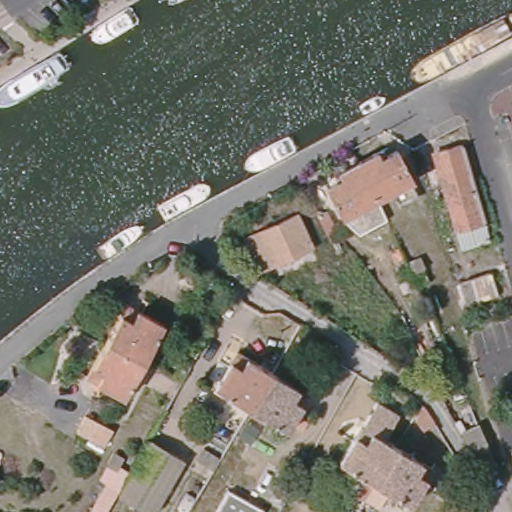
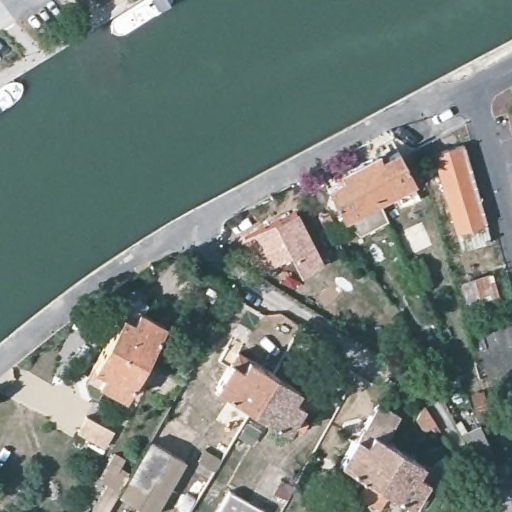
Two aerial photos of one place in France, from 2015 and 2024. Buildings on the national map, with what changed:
unchanged [(477,209),(446,218),(432,167),(428,154),(437,151),(458,144),(477,209)]
unchanged [(400,204),(393,188),(376,197),(359,163),(376,154),(383,151),(387,158),(399,152),(413,178),(411,179),(419,195),(400,204)]
unchanged [(340,215),(326,189),(339,182),(336,175),(342,172),(359,163),(376,197),(340,215)]
unchanged [(261,273),(246,241),(298,215),(314,248),(261,273)]
unchanged [(411,274),(406,262),(419,256),(424,268),(411,274)]
unchanged [(480,298),(483,307),(468,312),(460,283),(490,274),(496,293),(480,298)]
unchanged [(118,311),(123,301),(133,306),(162,322),(142,358),(103,337),(118,311)]
unchanged [(90,361),(103,337),(142,358),(122,394),(94,379),(83,374),(90,361)]
unchanged [(213,393),(228,369),(234,357),(244,364),(269,378),(247,414),(213,393)]
unchanged [(247,414),(269,378),(293,393),(303,399),(297,410),(283,435),(247,414)]
unchanged [(107,449),(79,434),(88,418),(116,435),(107,449)]
unchanged [(484,471),(459,430),(477,422),(497,465),(484,471)]
unchanged [(333,468),(347,444),(354,433),(364,439),(388,453),(366,489),(333,468)]
unchanged [(151,440),(186,459),(158,512),(152,512),(121,495),(151,440)]
unchanged [(198,462),(203,450),(219,458),(213,470),(198,462)]
unchanged [(366,489),(388,453),(412,467),(422,473),(415,485),(401,509),(366,489)]
unchanged [(108,467),(115,455),(123,460),(116,471),(108,467)]
unchanged [(222,512),(234,490),(266,510),(265,512),(222,512)]

